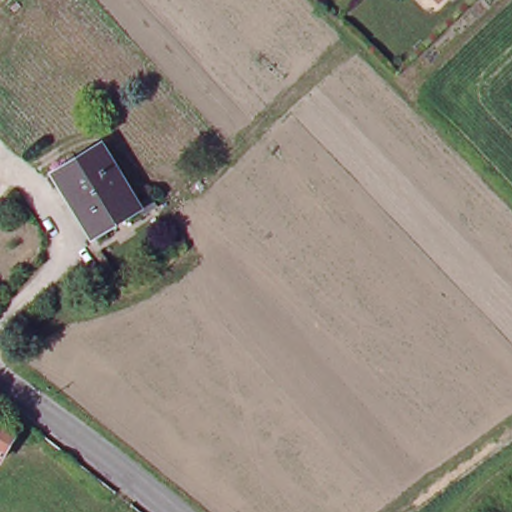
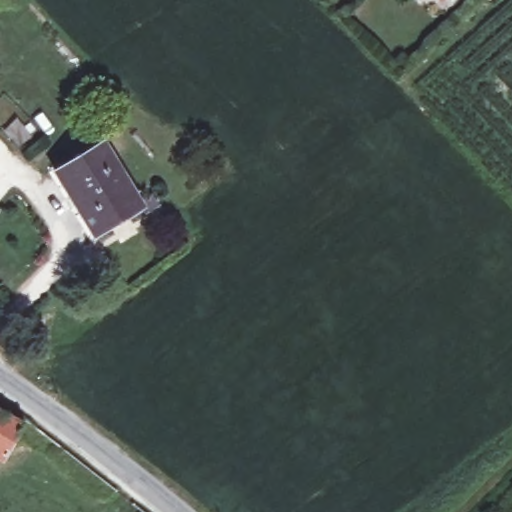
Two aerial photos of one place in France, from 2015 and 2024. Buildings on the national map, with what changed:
unchanged [(103,144),(140,204),(93,232),(57,172),(103,144)]
unchanged [(0,459),(0,412),(22,425),(2,460),(0,459)]

